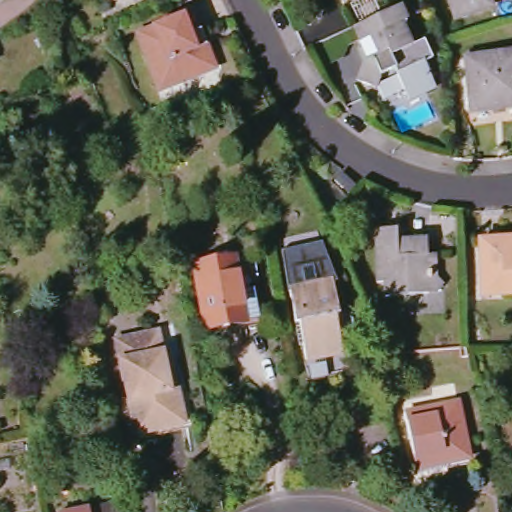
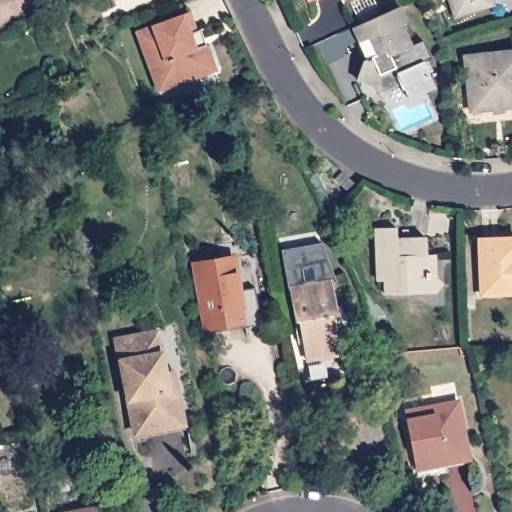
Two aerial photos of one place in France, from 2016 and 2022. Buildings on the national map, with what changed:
unchanged [(475,10),(457,15),(452,0),(490,0),(492,4),(475,10)]
unchanged [(410,19),(405,22),(415,44),(394,54),(400,68),(377,78),(362,86),(359,79),(365,61),(377,55),(370,41),(359,46),(353,27),(403,4),(410,19)]
unchanged [(185,80),(160,90),(139,33),(190,14),(196,31),(200,29),(206,43),(212,60),(216,69),(185,80)]
unchanged [(412,103),(405,92),(385,99),(377,78),(400,68),(394,54),(415,44),(427,40),(435,61),(427,66),(437,91),(412,103)]
unchanged [(512,52),(512,105),(472,108),(467,57),(512,52)]
unchanged [(437,293),(430,293),(387,295),(386,281),(379,281),(377,229),(397,228),(398,244),(405,244),(405,238),(427,237),(428,255),(435,254),(437,275),(444,284),(437,293)]
unchanged [(337,286),(334,287),(338,319),(335,320),(343,358),(307,364),(304,349),(300,349),(290,296),(289,296),(283,255),(281,245),(317,238),(319,249),(322,248),(337,286)]
unchanged [(482,295),(480,240),(512,239),(512,294),(482,295)]
unchanged [(260,319),(246,321),(247,322),(207,328),(196,263),(236,257),(241,290),(255,288),(260,319)]
unchanged [(137,434),(118,340),(157,333),(165,374),(174,372),(177,389),(184,424),(137,434)]
unchanged [(459,402),(469,458),(446,463),(447,468),(417,474),(406,412),(459,402)]
unchanged [(118,504),(119,512),(74,512),(118,504)]

